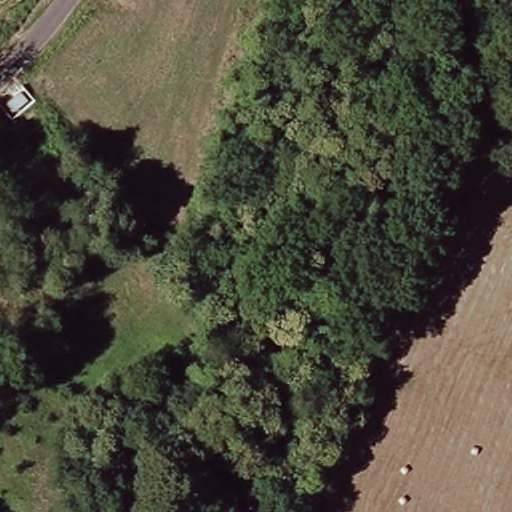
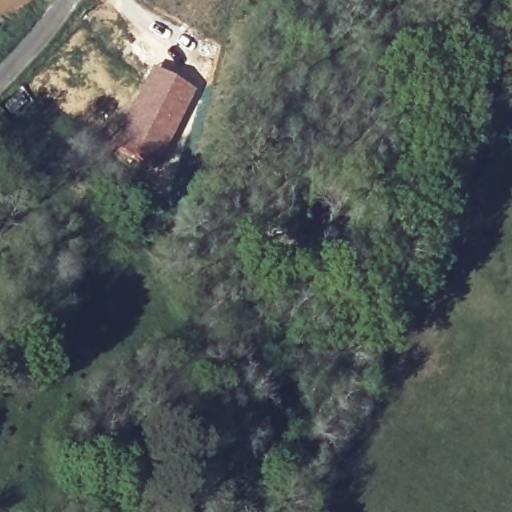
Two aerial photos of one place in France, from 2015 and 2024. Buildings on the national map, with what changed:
new [(150,66),(197,88),(158,170),(110,145),(150,66)]

